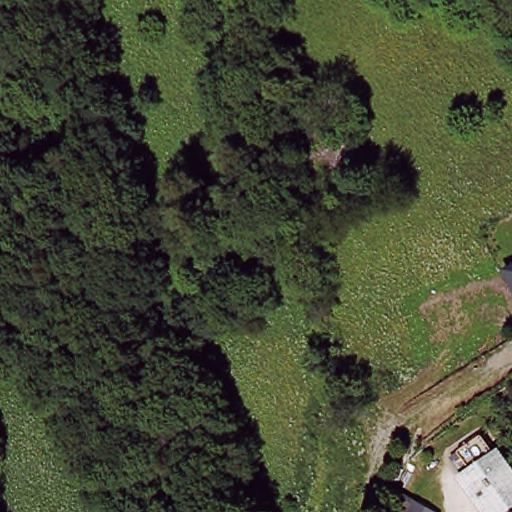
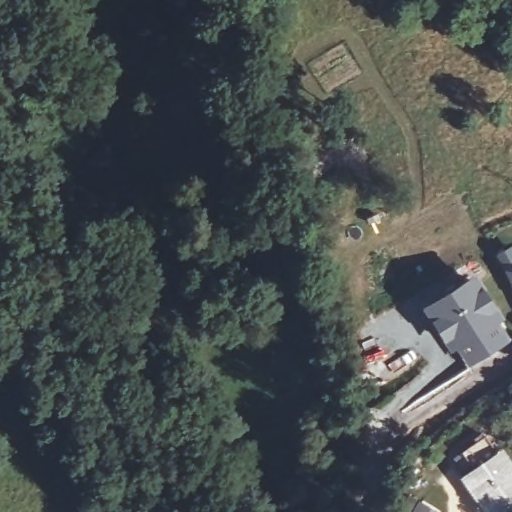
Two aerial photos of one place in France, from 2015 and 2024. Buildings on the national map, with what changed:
unchanged [(512,271),(512,292),(505,276),(512,271)]
new [(455,349),(450,352),(422,306),(475,273),(505,318),(497,323),(509,340),(469,366),(455,349)]
unchanged [(479,512),(452,468),(502,437),(512,454),(512,512),(479,512)]

